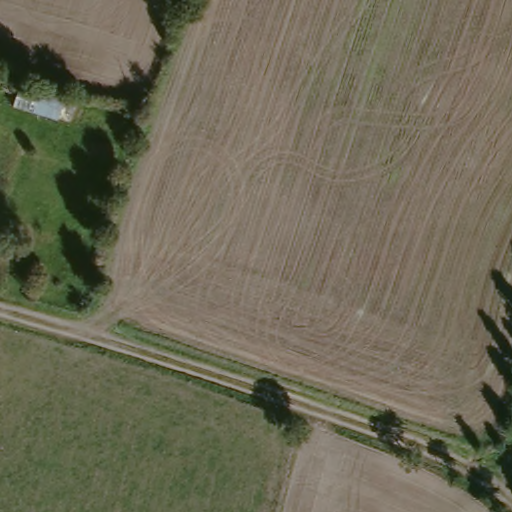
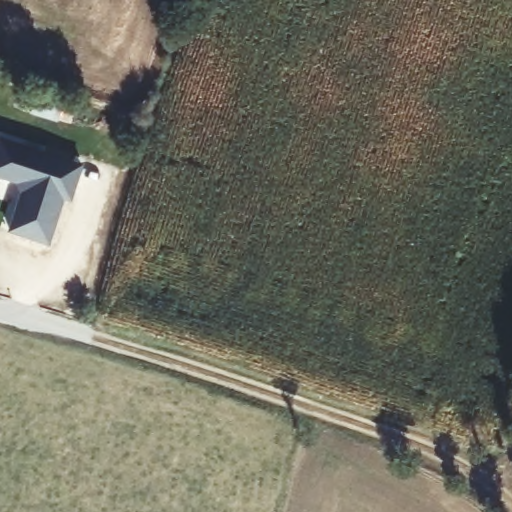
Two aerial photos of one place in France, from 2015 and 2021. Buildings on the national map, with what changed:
unchanged [(45,111),(42,118),(26,113),(32,96),(59,104),(56,114),(45,111)]
new [(61,195),(45,241),(7,227),(21,185),(19,181),(0,174),(0,136),(80,163),(69,192),(68,197),(61,195)]

